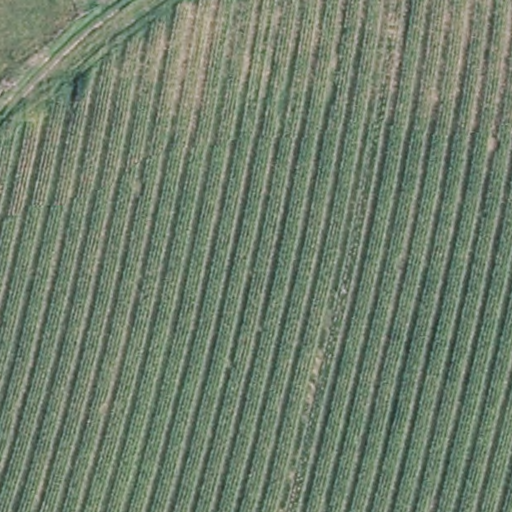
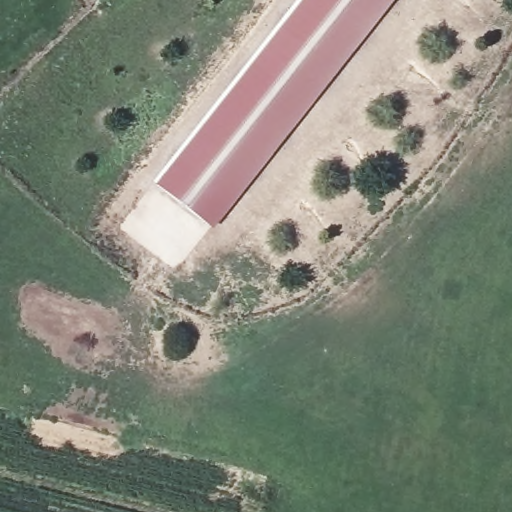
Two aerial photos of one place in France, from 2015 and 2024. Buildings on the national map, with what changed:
new [(213,228),(154,182),(299,0),(393,0),(213,228)]

